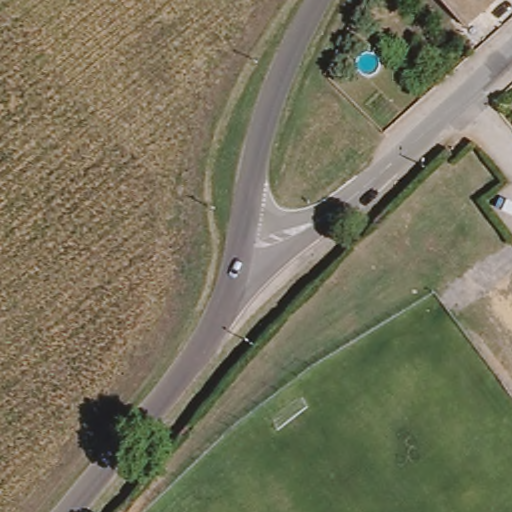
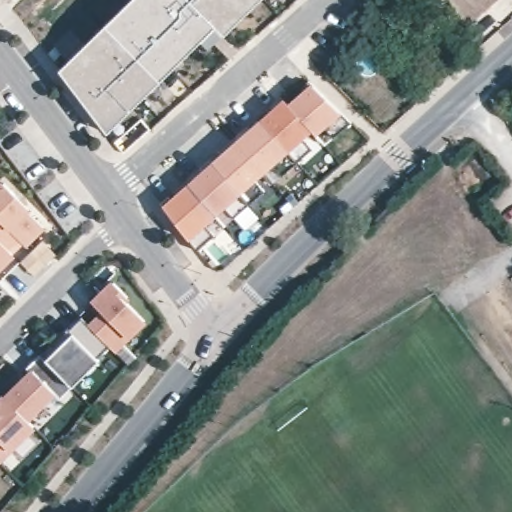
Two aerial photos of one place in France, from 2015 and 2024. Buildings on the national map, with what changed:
new [(78,96),(62,77),(70,69),(140,0),(267,0),(252,15),(230,37),(228,36),(213,50),(206,42),(124,124),(109,138),(100,127),(78,96)]
unchanged [(463,32),(457,25),(435,0),(500,0),(463,32)]
new [(215,165),(289,100),(294,105),(315,85),(345,117),(321,139),(318,136),(294,156),(299,162),(250,207),(244,200),(220,221),(192,186),(215,165)]
new [(6,180),(31,206),(29,208),(46,224),(27,243),(21,236),(10,247),(15,253),(0,268),(0,186),(6,180)]
new [(7,394),(8,396),(22,381),(17,377),(42,352),(58,337),(71,327),(76,332),(72,328),(85,317),(93,325),(107,310),(96,300),(115,281),(129,295),(126,298),(146,319),(115,347),(112,344),(99,356),(101,359),(61,397),(56,391),(29,417),(36,424),(11,449),(3,440),(0,443),(0,401),(7,394)]
new [(3,440),(11,449),(0,459),(0,443),(3,440)]

